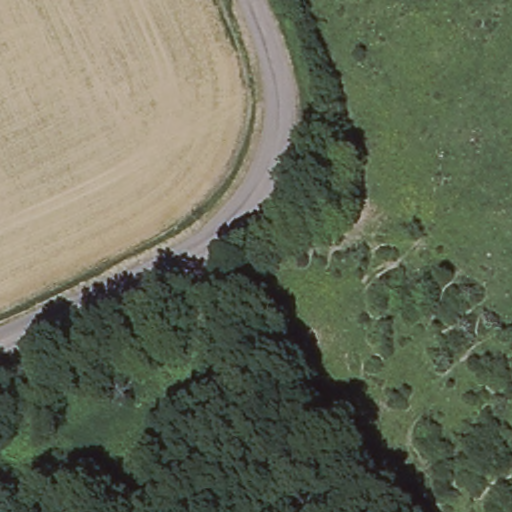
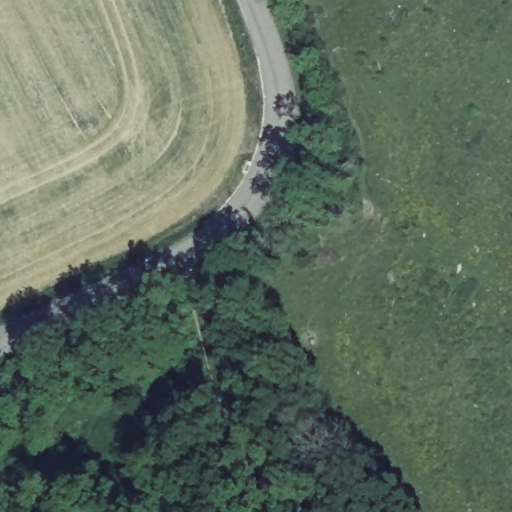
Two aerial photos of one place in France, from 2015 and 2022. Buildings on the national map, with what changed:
unchanged [(169,464),(113,488),(101,462),(160,437),(169,464)]

